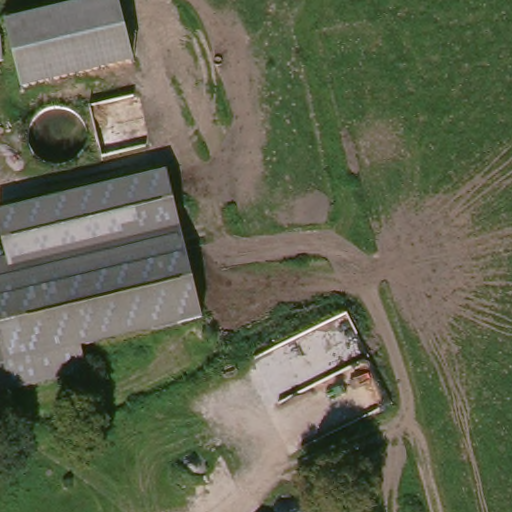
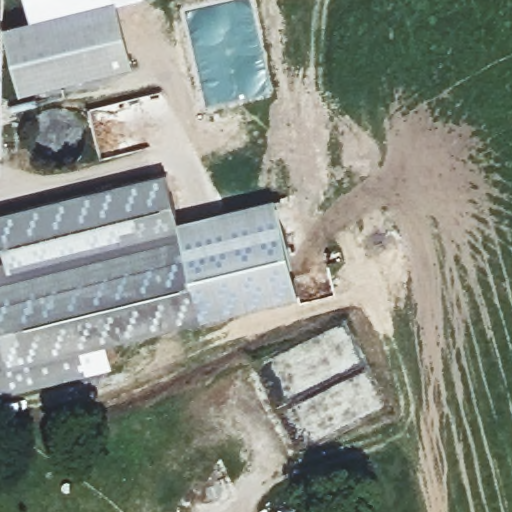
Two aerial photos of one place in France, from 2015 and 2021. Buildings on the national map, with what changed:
unchanged [(3,26),(92,0),(116,0),(132,56),(22,89),(3,26)]
unchanged [(211,313),(89,346),(94,372),(0,398),(0,353),(8,351),(0,318),(0,263),(9,261),(0,224),(0,215),(169,166),(211,313)]
new [(300,295),(89,349),(89,346),(211,313),(184,219),(276,197),(300,295)]

